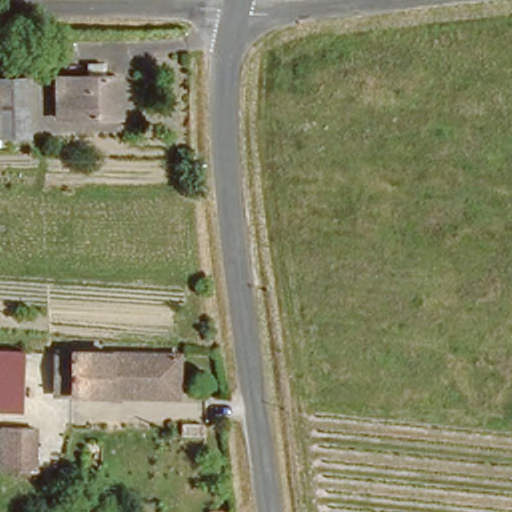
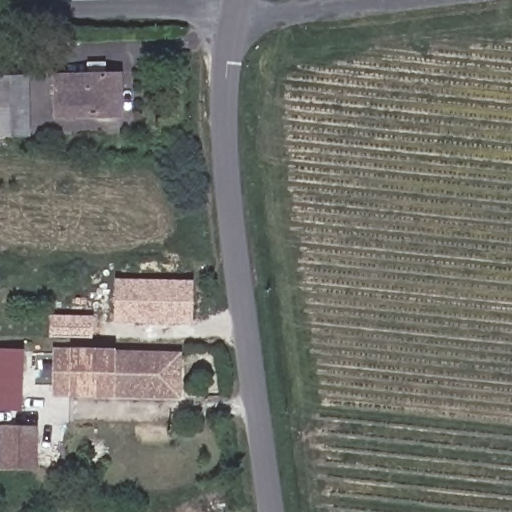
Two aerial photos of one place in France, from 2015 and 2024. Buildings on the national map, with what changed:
unchanged [(116,115),(55,115),(54,74),(115,72),(116,115)]
unchanged [(0,134),(0,80),(20,80),(19,134),(0,134)]
new [(114,323),(115,278),(193,280),(194,325),(114,323)]
new [(0,409),(0,347),(19,347),(16,379),(21,379),(21,403),(23,410),(0,409)]
unchanged [(170,355),(170,389),(91,386),(50,386),(51,353),(90,353),(170,355)]
demolished [(21,403),(0,402),(0,379),(16,379),(21,379),(21,403)]
unchanged [(0,470),(0,428),(26,430),(24,471),(0,470)]

